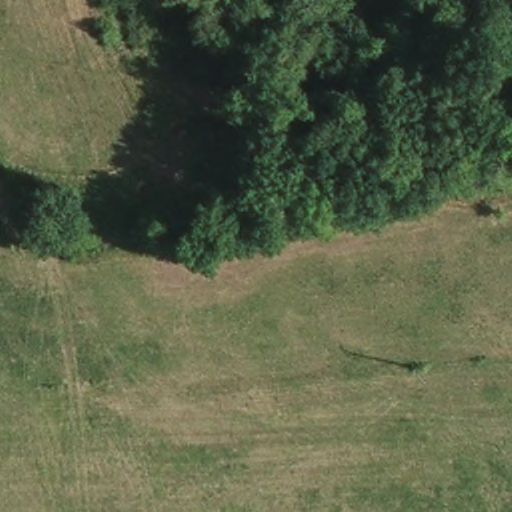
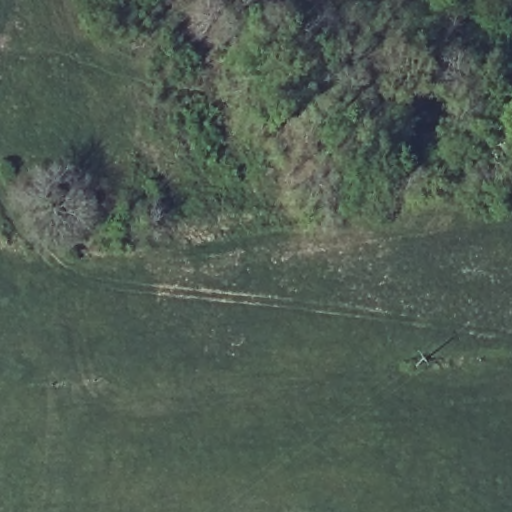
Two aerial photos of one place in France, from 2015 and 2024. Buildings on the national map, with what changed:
[]

